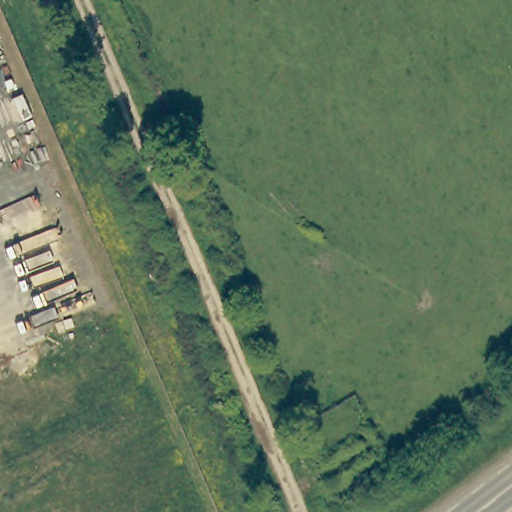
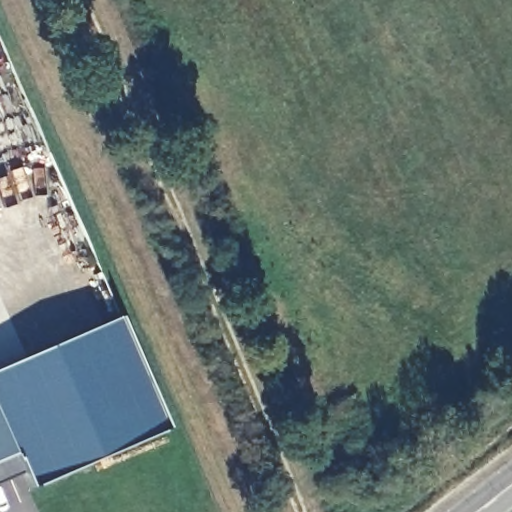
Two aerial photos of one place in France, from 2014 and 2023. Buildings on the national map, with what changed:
new [(118,318),(166,430),(30,489),(24,478),(0,488),(0,369),(118,318)]

